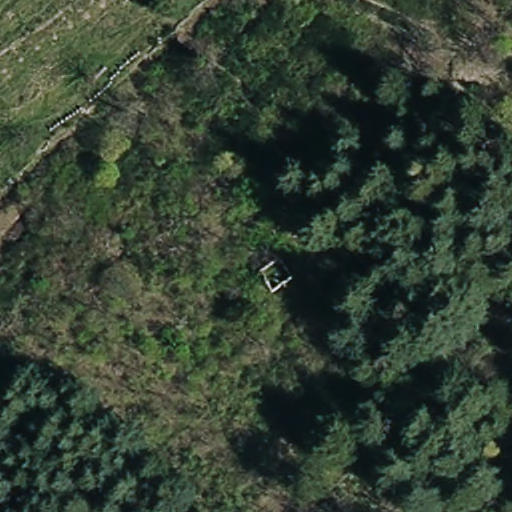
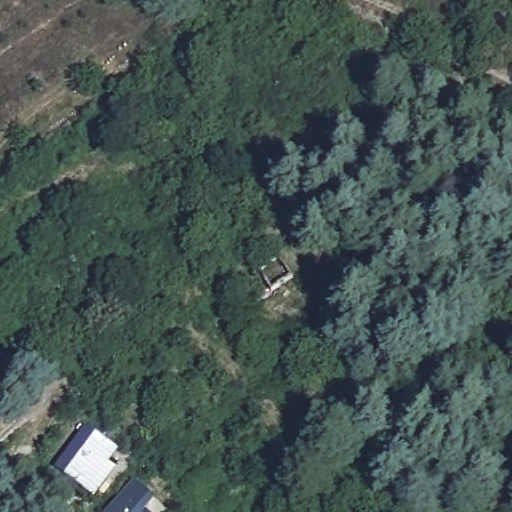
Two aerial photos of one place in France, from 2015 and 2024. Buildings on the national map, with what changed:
unchanged [(303,314),(285,323),(276,303),(295,292),(303,314)]
new [(119,451),(109,464),(116,470),(95,500),(53,470),(87,427),(119,451)]
new [(135,482),(155,499),(145,510),(147,512),(108,512),(135,482)]

